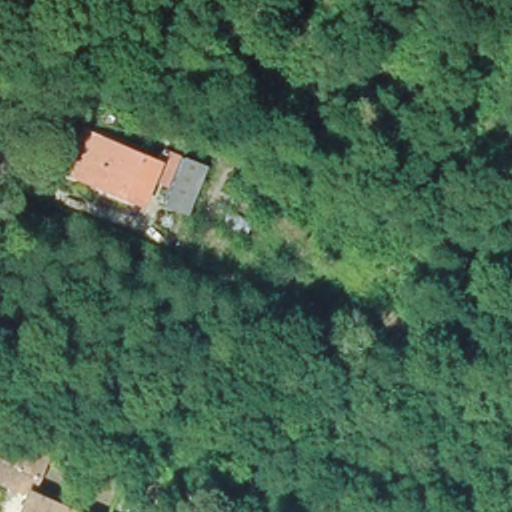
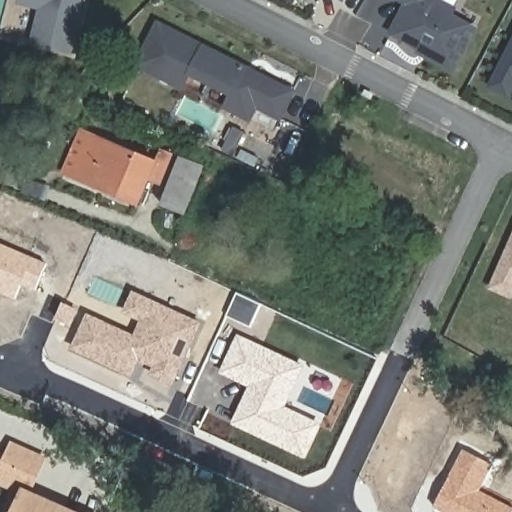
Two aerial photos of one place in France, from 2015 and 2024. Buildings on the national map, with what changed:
new [(33,41),(42,7),(19,1),(19,0),(85,0),(71,52),(33,41)]
new [(391,32),(406,5),(397,0),(439,0),(454,7),(450,15),(475,27),(452,70),(425,55),(418,51),(420,47),(391,32)]
new [(247,67),(245,72),(252,75),(255,71),(294,91),(280,119),(257,107),(251,120),(225,107),(231,95),(191,74),(183,89),(137,65),(158,22),(247,67)]
new [(492,86),(512,45),(512,84),(507,94),(492,86)]
unchanged [(71,122),(46,112),(56,89),(80,98),(71,122)]
unchanged [(159,152),(171,157),(159,184),(146,179),(134,205),(70,178),(59,174),(77,131),(89,136),(154,164),(159,152)]
unchanged [(200,167),(179,215),(157,205),(176,158),(200,167)]
new [(512,236),(512,298),(490,288),(512,236)]
new [(47,263),(35,291),(22,286),(16,300),(0,293),(0,244),(47,263)]
new [(88,313),(135,336),(141,322),(123,313),(133,291),(203,323),(174,386),(150,375),(154,367),(140,361),(132,377),(71,350),(88,313)]
new [(285,410),(321,425),(306,460),(232,425),(249,387),(220,373),(237,336),(305,367),(285,410)]
unchanged [(3,439),(34,452),(16,488),(0,482),(0,446),(3,439)]
new [(493,465),(480,491),(512,508),(512,512),(444,512),(435,507),(464,450),(493,465)]
unchanged [(16,488),(68,512),(5,512),(16,488)]

